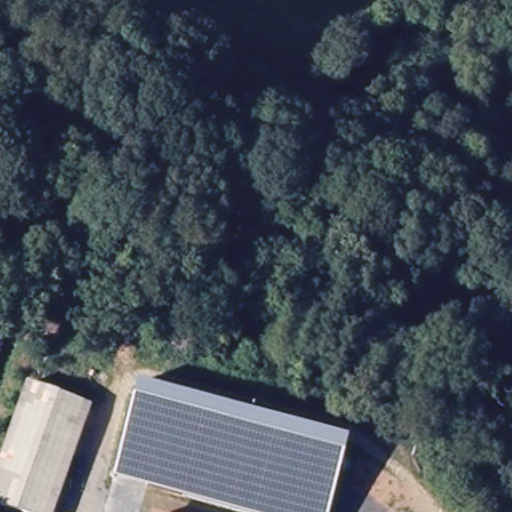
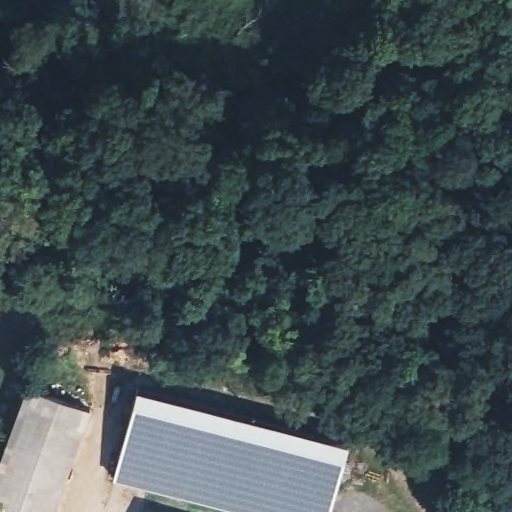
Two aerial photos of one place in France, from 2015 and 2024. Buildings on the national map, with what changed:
unchanged [(20,388),(86,410),(76,442),(10,419),(20,388)]
unchanged [(344,436),(331,511),(220,469),(179,453),(174,469),(122,450),(116,466),(129,397),(162,403),(344,436)]
unchanged [(0,512),(0,453),(0,451),(10,419),(76,442),(56,512),(0,512)]
unchanged [(233,512),(163,500),(112,490),(116,466),(122,450),(174,469),(179,453),(220,469),(331,511),(331,512),(233,512)]

